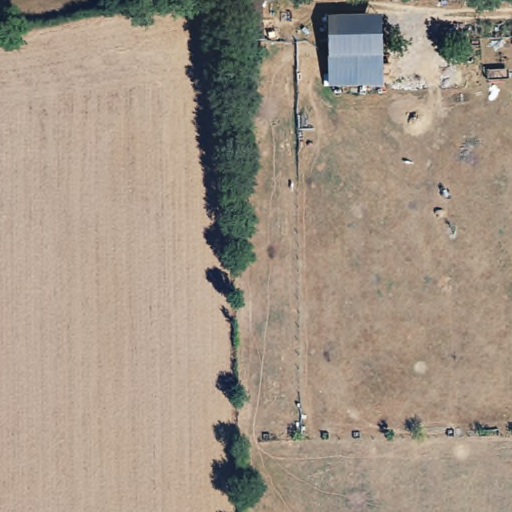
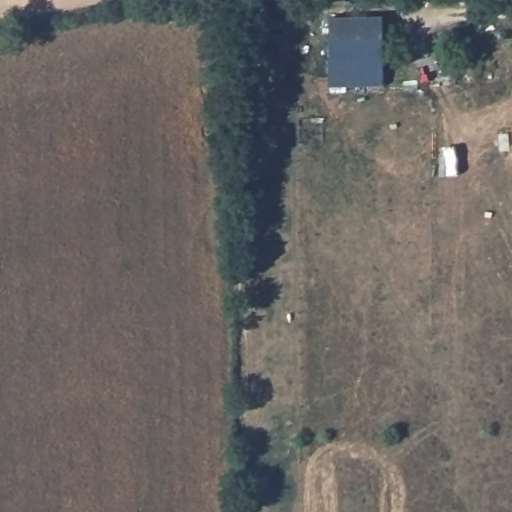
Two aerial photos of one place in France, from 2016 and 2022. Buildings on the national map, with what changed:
unchanged [(328,21),(382,20),(382,87),(327,88),(328,21)]

